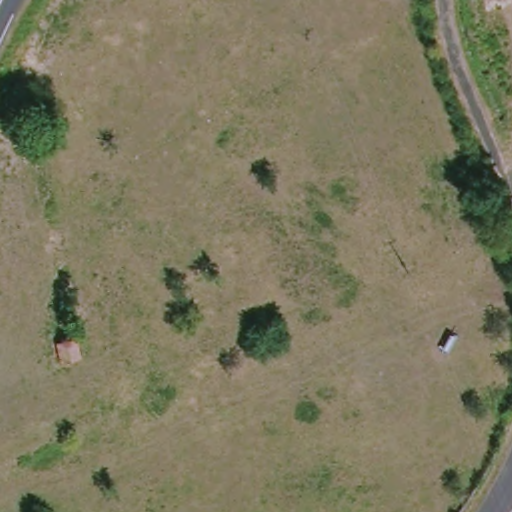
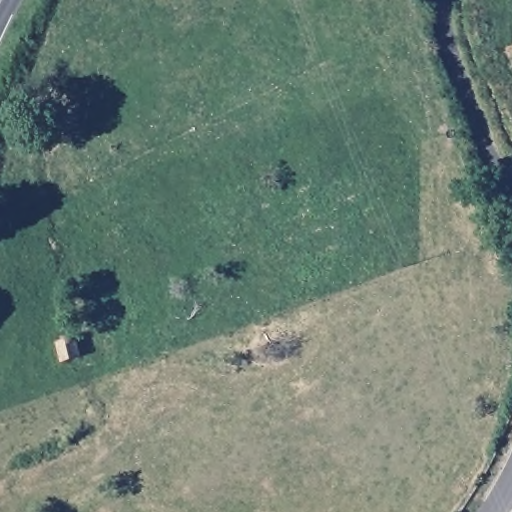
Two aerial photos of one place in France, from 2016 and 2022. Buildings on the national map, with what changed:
unchanged [(61,357),(59,340),(75,338),(78,355),(61,357)]

